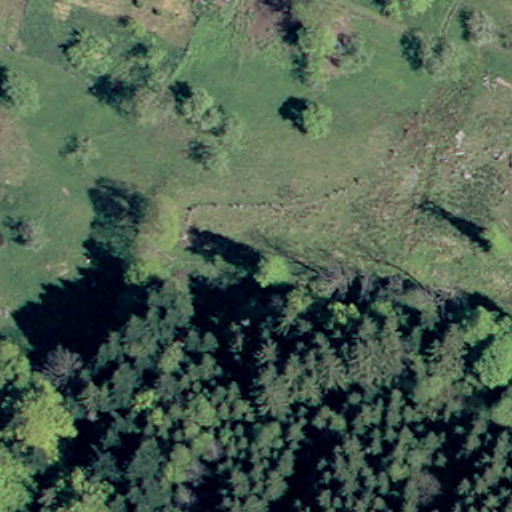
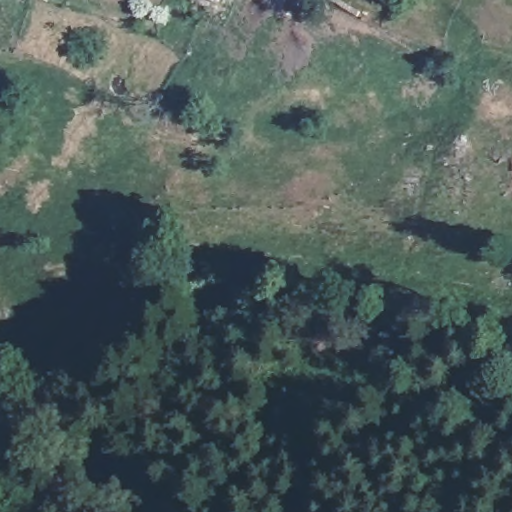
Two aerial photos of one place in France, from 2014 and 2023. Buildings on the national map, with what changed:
[]

